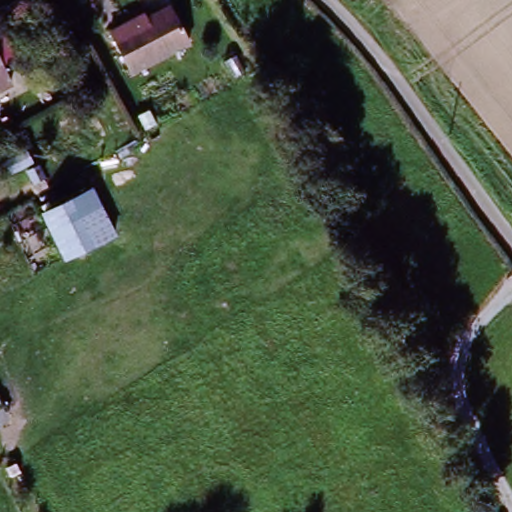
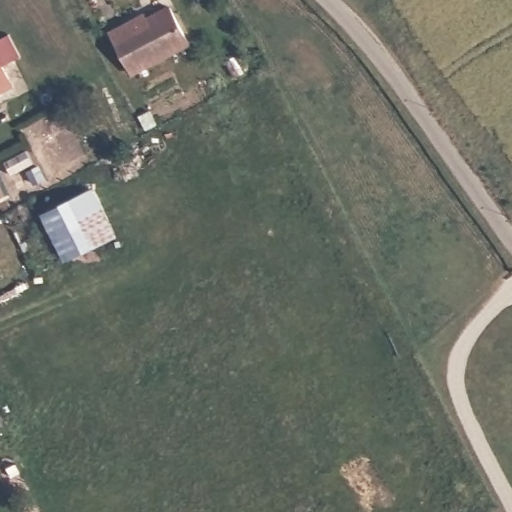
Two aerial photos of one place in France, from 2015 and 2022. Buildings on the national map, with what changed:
unchanged [(135,73),(115,32),(129,25),(132,29),(173,9),(192,46),(135,73)]
unchanged [(0,77),(0,60),(7,73),(0,77)]
unchanged [(97,187),(119,237),(66,261),(42,210),(97,187)]
unchanged [(0,424),(0,395),(12,418),(0,424)]

